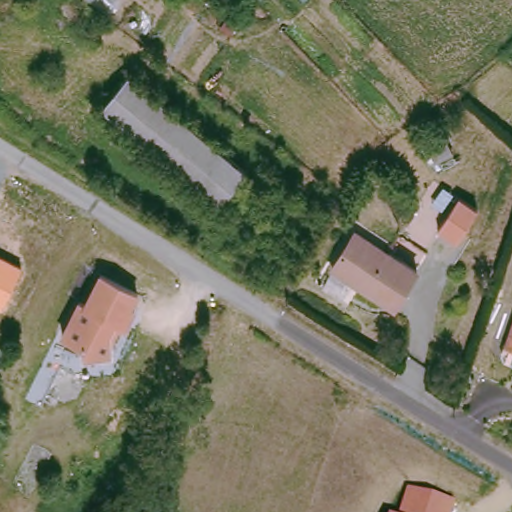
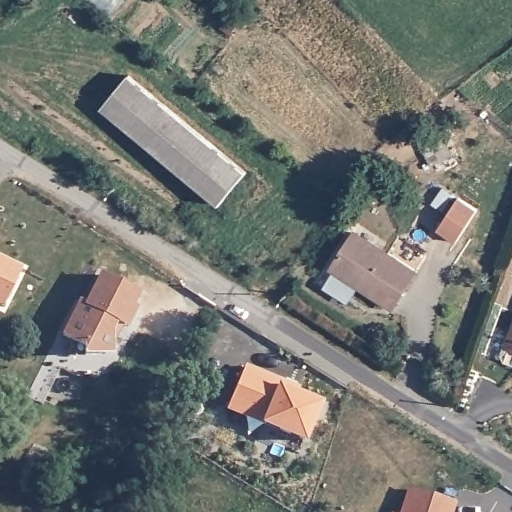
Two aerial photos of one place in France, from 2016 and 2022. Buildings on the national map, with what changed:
unchanged [(128,75),(247,172),(220,205),(102,108),(128,75)]
unchanged [(355,231),(417,271),(395,307),(332,267),(355,231)]
unchanged [(1,308),(0,308),(0,255),(21,266),(1,308)]
unchanged [(130,301),(135,303),(125,321),(115,316),(110,327),(111,349),(85,350),(84,341),(62,329),(80,296),(85,299),(100,269),(137,288),(130,301)]
unchanged [(509,335),(512,327),(512,336),(509,335)]
new [(321,403),(305,443),(262,424),(225,409),(247,363),(281,379),(280,385),(321,403)]
unchanged [(407,487),(455,501),(453,512),(399,512),(407,487)]

